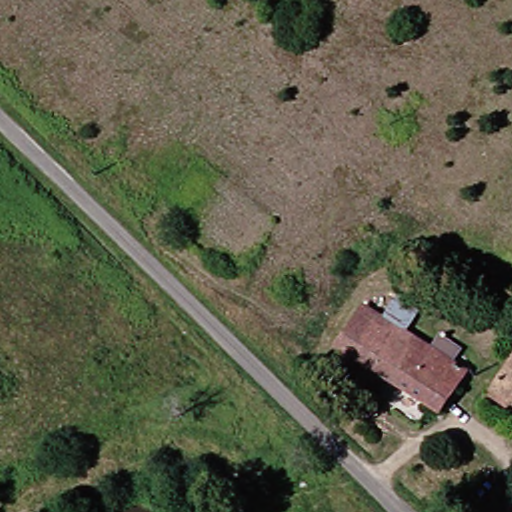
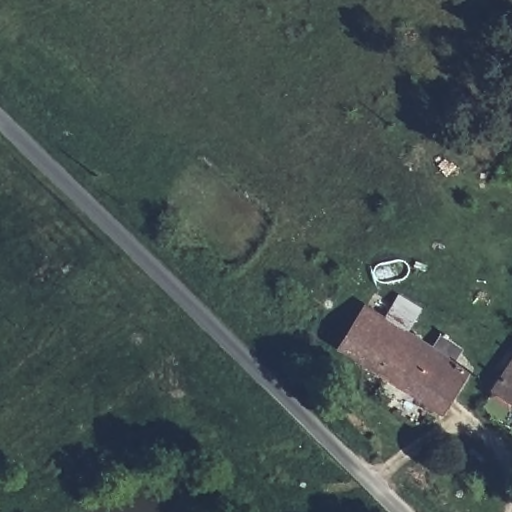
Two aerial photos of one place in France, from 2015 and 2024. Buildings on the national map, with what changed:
unchanged [(418,402),(351,358),(332,345),(358,307),(374,318),(378,320),(387,307),(400,316),(393,329),(458,371),(446,390),(432,411),(418,402)]
unchanged [(512,357),(512,403),(491,387),(512,357)]

